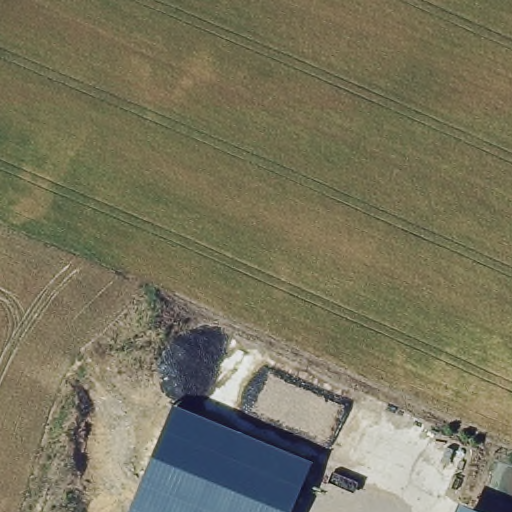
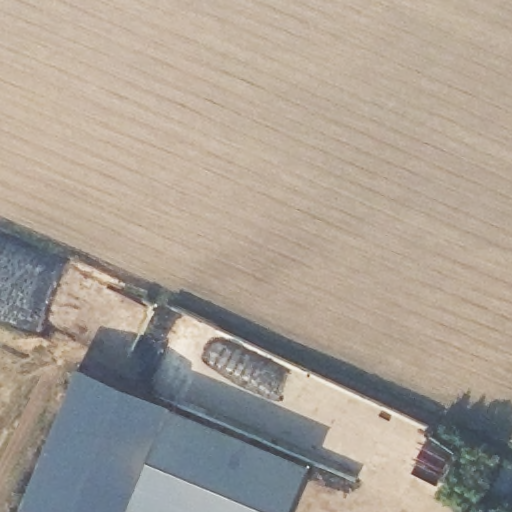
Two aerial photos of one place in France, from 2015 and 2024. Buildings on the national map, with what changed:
new [(80,365),(173,405),(128,512),(33,512),(21,507),(80,365)]
unchanged [(313,461),(292,512),(128,512),(173,405),(313,461)]
unchanged [(479,512),(457,512),(460,505),(479,512)]

